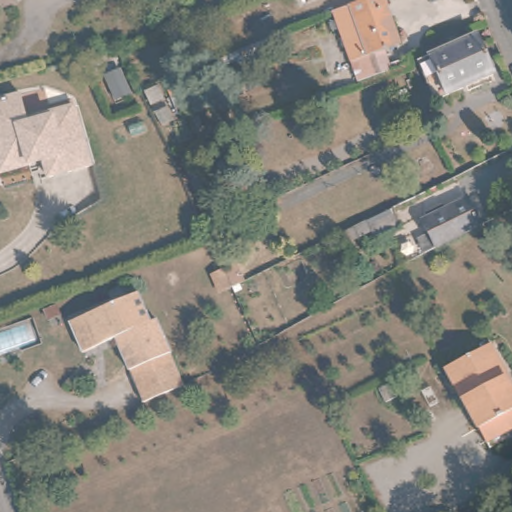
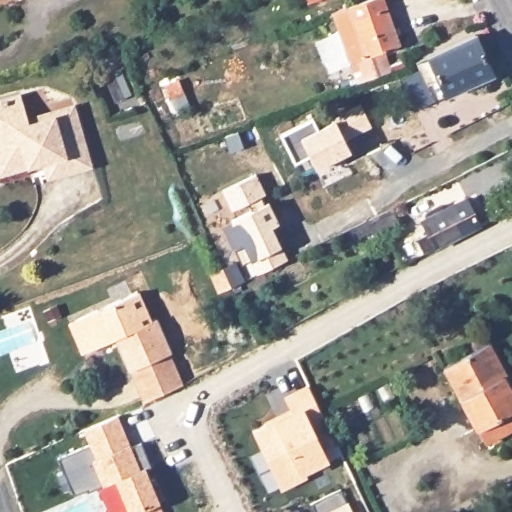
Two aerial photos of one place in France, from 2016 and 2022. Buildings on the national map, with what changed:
unchanged [(357,0),(383,0),(398,38),(383,45),(392,65),(358,79),(330,11),(357,0)]
unchanged [(469,39),(486,76),(439,97),(424,59),(469,39)]
unchanged [(28,123),(51,117),(50,112),(72,106),(89,165),(47,177),(40,153),(27,157),(29,165),(6,171),(0,173),(0,100),(20,95),(28,123)]
new [(345,141),(350,151),(315,168),(308,156),(294,163),(279,133),(311,117),(315,123),(359,103),(371,127),(345,141)]
new [(248,260),(229,220),(233,218),(220,190),(254,175),(268,203),(278,223),(271,227),(280,245),(248,260)]
unchanged [(425,251),(416,235),(427,229),(421,217),(468,194),(481,221),(425,251)]
new [(392,209),(400,227),(376,239),(371,230),(341,245),(336,235),(392,209)]
new [(234,264),(243,282),(231,288),(219,293),(211,274),(223,269),(234,264)]
unchanged [(138,293),(150,321),(157,318),(185,383),(144,402),(115,340),(83,352),(71,321),(138,293)]
unchanged [(491,339),(506,371),(503,372),(512,392),(512,421),(482,437),(445,362),(491,339)]
new [(265,424),(263,421),(288,409),(283,396),(307,385),(325,422),(312,428),(329,462),(304,473),(306,477),(280,490),(251,431),(265,424)]
new [(115,481),(87,492),(85,490),(74,494),(58,457),(89,444),(83,431),(118,417),(131,446),(140,442),(150,466),(145,468),(149,478),(153,477),(163,500),(158,502),(162,512),(125,512),(127,511),(115,481)]
new [(341,488),(353,512),(315,512),(309,502),(341,488)]

